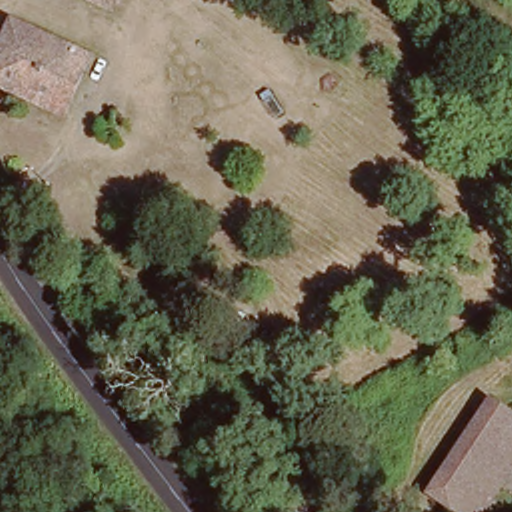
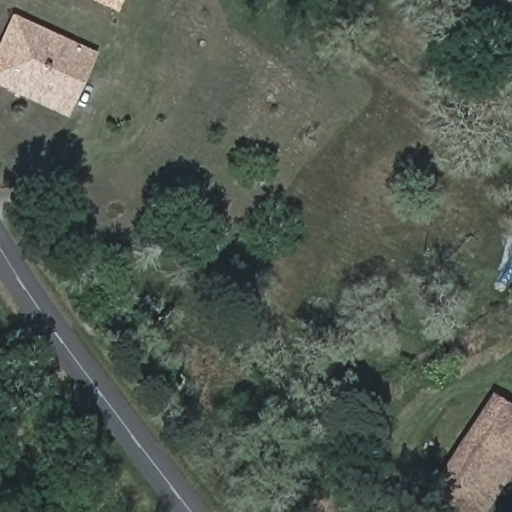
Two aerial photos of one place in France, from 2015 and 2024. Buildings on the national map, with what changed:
unchanged [(112,14),(87,0),(120,0),(112,14)]
unchanged [(65,116),(0,80),(0,53),(21,12),(97,56),(65,116)]
unchanged [(470,512),(435,485),(498,398),(512,409),(512,465),(476,512),(470,512)]

